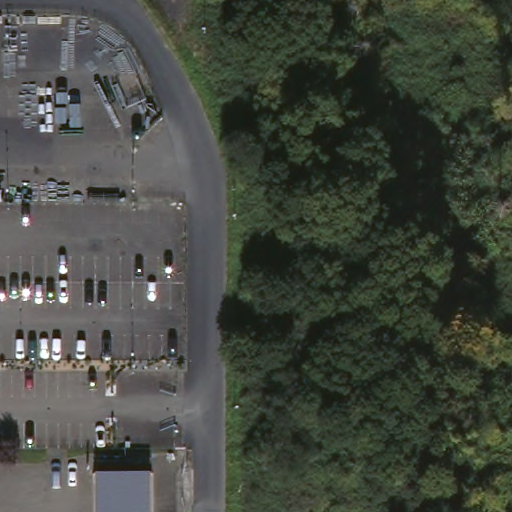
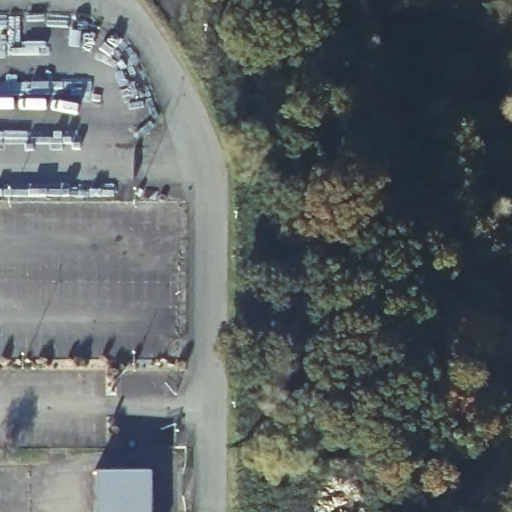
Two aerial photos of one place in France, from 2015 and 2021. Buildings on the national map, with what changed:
unchanged [(92,476),(145,476),(145,512),(92,512),(92,476)]

